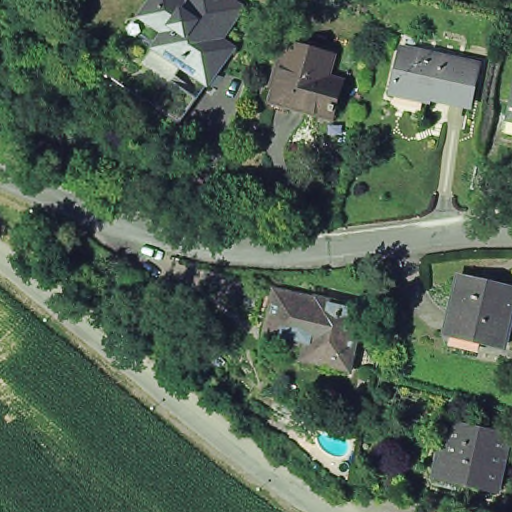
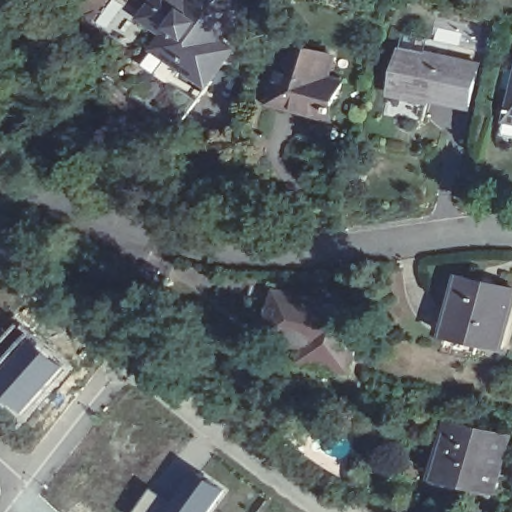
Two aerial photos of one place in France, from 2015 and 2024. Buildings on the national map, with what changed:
unchanged [(204,86),(152,51),(162,35),(150,27),(138,20),(151,0),(175,0),(183,6),(187,0),(227,0),(240,9),(214,46),(227,55),(219,65),(204,86)]
unchanged [(267,107),(283,50),(330,62),(325,84),(338,86),(330,112),(332,112),(330,120),(328,119),(327,124),(305,118),(267,107)]
unchanged [(430,108),(393,100),(401,62),(402,55),(416,59),(479,71),(470,112),(468,117),(430,108)]
unchanged [(0,102),(0,72),(15,84),(0,102)]
unchanged [(502,130),(505,115),(512,85),(512,132),(502,130)]
unchanged [(505,355),(448,343),(462,286),(485,291),(495,293),(512,297),(512,325),(505,355)]
unchanged [(306,366),(310,353),(268,343),(280,297),(320,307),(320,305),(368,315),(355,368),(353,378),(306,366)]
new [(72,365),(25,417),(0,395),(0,368),(33,331),(72,365)]
unchanged [(439,483),(445,452),(452,453),(458,427),(512,439),(512,449),(503,490),(483,486),(482,493),(439,483)]
new [(168,496),(174,501),(200,468),(228,490),(212,512),(135,512),(154,486),(168,496)]

